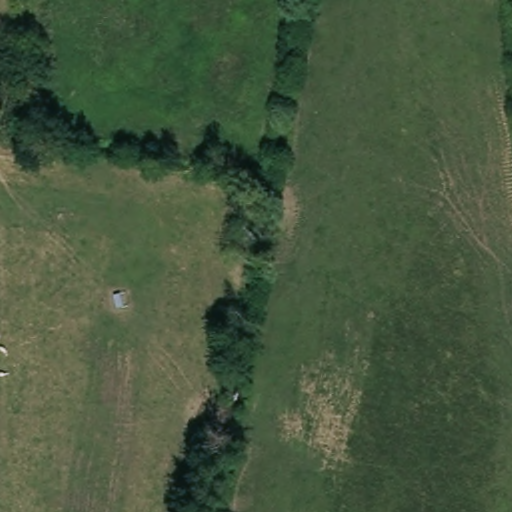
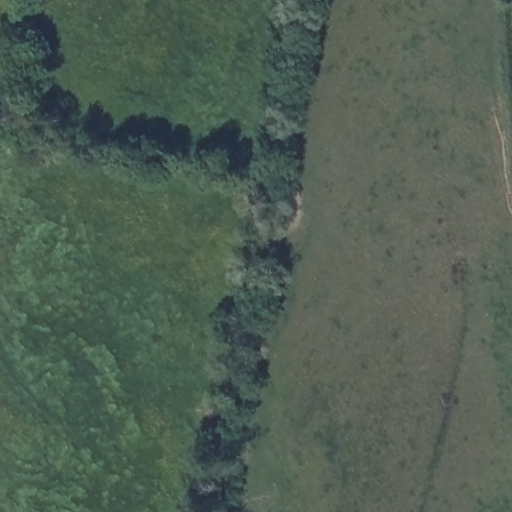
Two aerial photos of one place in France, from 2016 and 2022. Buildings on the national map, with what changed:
[]

